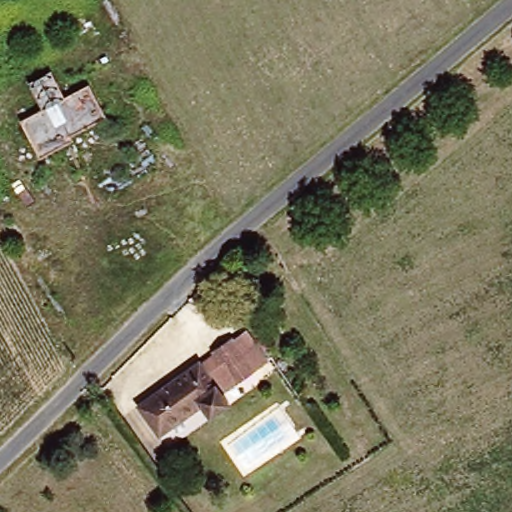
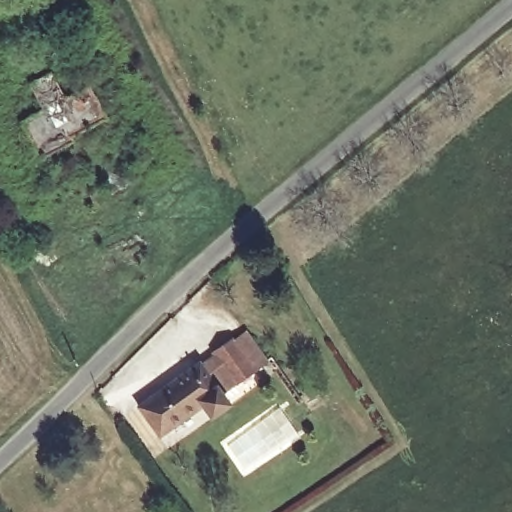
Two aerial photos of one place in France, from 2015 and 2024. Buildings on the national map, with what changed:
unchanged [(18,124),(40,114),(25,84),(52,70),(66,95),(89,86),(110,129),(75,145),(77,150),(43,169),(18,124)]
unchanged [(242,337),(247,343),(263,369),(213,400),(220,411),(202,422),(195,411),(153,439),(133,408),(195,371),(193,368),(242,337)]

